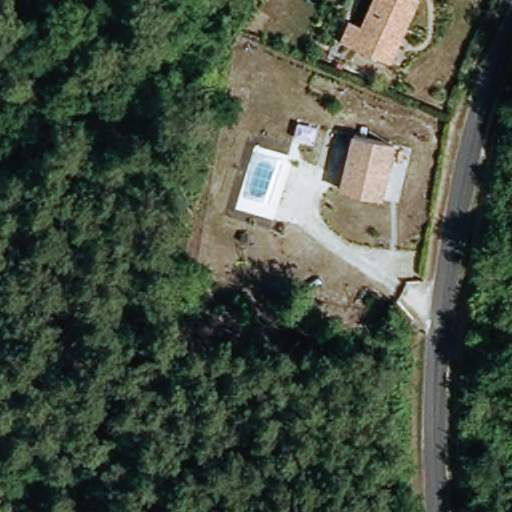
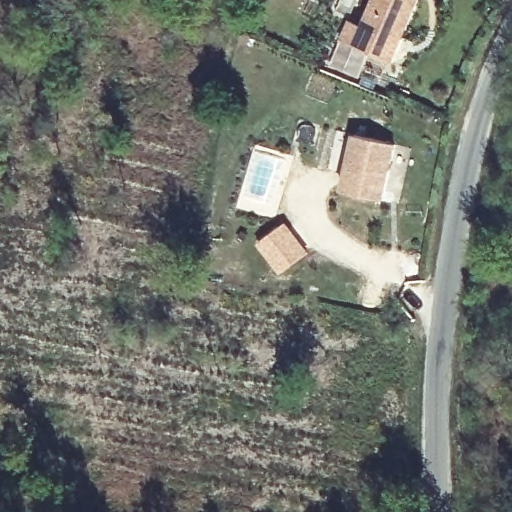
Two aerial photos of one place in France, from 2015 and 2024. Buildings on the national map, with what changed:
unchanged [(376,0),(420,0),(405,36),(400,36),(389,61),(355,46),(376,0)]
unchanged [(357,136),(398,146),(386,201),(345,192),(357,136)]
new [(310,252),(281,274),(258,243),(287,221),(310,252)]

